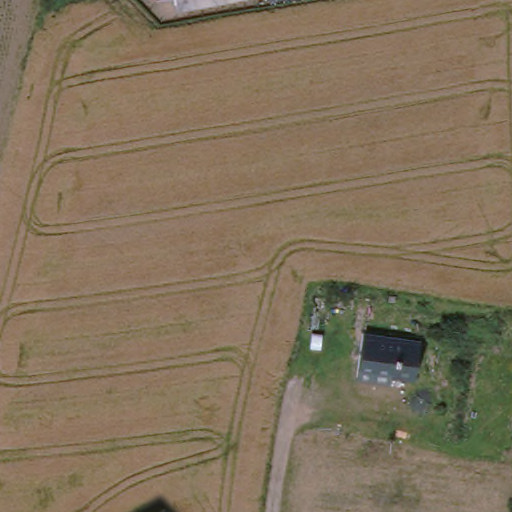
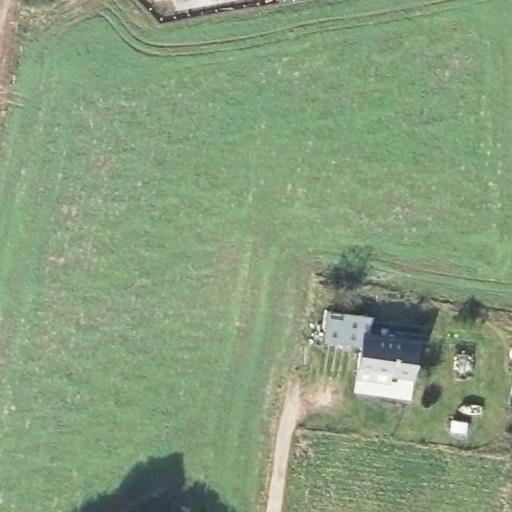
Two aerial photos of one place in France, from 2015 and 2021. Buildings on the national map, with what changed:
unchanged [(167,0),(183,0),(168,3),(167,0)]
unchanged [(188,8),(186,0),(234,0),(188,8)]
unchanged [(361,366),(363,356),(368,321),(426,330),(419,368),(396,364),(394,372),(361,366)]

